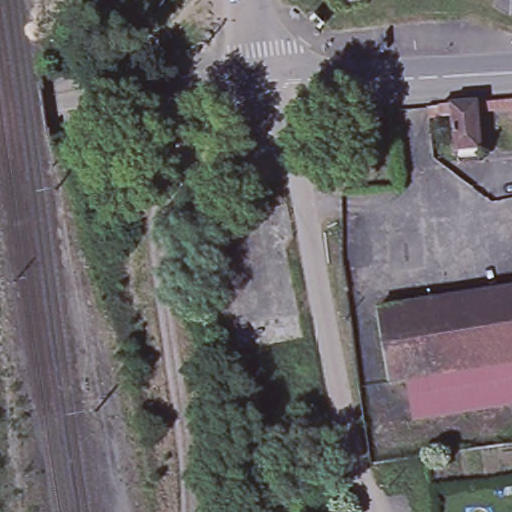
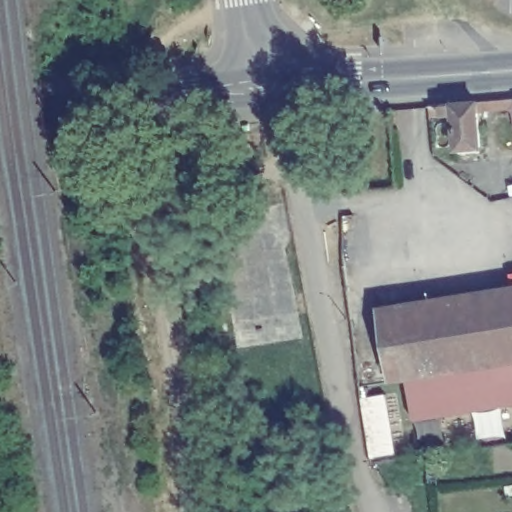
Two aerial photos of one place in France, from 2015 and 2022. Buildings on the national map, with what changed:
unchanged [(43,0),(63,0),(66,23),(47,26),(43,0)]
unchanged [(510,112),(509,110),(477,113),(477,115),(479,148),(456,149),(454,117),(454,116),(442,117),(441,105),(453,104),(476,102),(512,99),(512,113),(510,112)]
unchanged [(402,380),(388,382),(377,310),(512,289),(512,363),(402,380)]
unchanged [(402,380),(512,363),(512,405),(409,421),(402,380)]

